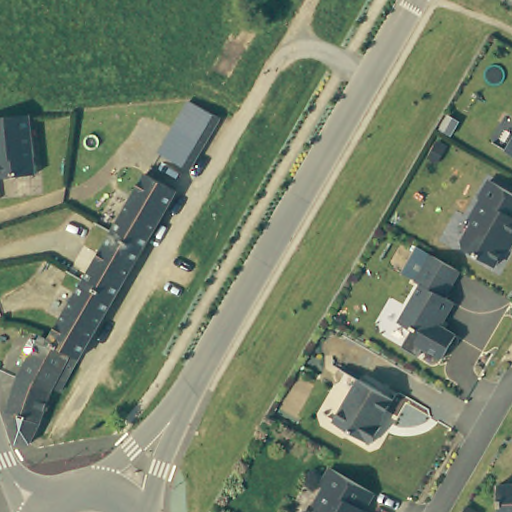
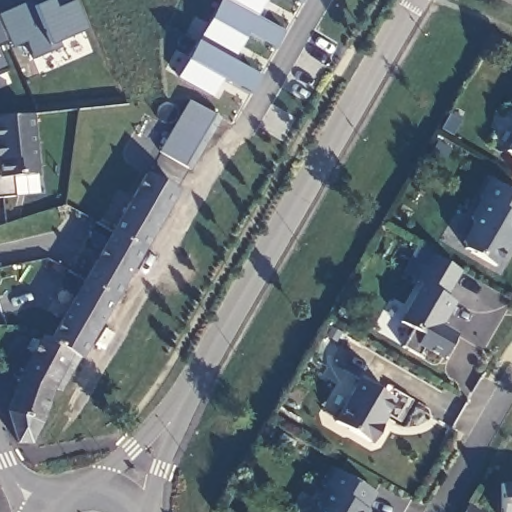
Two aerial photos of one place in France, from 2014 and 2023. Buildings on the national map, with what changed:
new [(61,49),(33,59),(13,8),(31,1),(33,6),(47,1),(47,0),(73,0),(85,31),(57,43),(61,49)]
new [(286,30),(276,48),(248,31),(230,60),(258,76),(248,93),(222,79),(213,94),(181,76),(223,0),(265,0),(257,14),(286,30)]
new [(301,0),(303,0),(302,1),(301,0)]
new [(0,22),(8,45),(0,47),(0,22)]
new [(0,74),(0,51),(7,71),(0,74)]
unchanged [(191,169),(160,152),(190,102),(220,117),(191,169)]
unchanged [(41,176),(4,180),(2,163),(0,163),(0,120),(34,116),(41,176)]
unchanged [(507,155),(512,147),(512,157),(507,155)]
new [(41,176),(44,196),(19,199),(16,179),(41,176)]
unchanged [(139,256),(121,286),(78,363),(76,362),(46,345),(80,286),(108,238),(142,178),(173,195),(139,256)]
unchanged [(468,254),(465,246),(475,228),(473,224),(484,206),(481,204),(491,184),(512,195),(512,245),(498,270),(468,254)]
unchanged [(457,300),(444,324),(459,332),(447,356),(427,346),(422,355),(405,346),(414,328),(402,321),(423,282),(419,280),(433,253),(461,269),(447,295),(457,300)]
unchanged [(46,345),(76,362),(58,396),(50,393),(48,399),(16,382),(39,341),(46,345)]
unchanged [(48,399),(38,430),(27,448),(15,448),(5,416),(16,382),(48,399)]
unchanged [(383,431),(375,446),(337,426),(359,384),(394,403),(380,429),(383,431)]
unchanged [(373,491),(364,511),(367,512),(323,512),(327,504),(322,501),(329,490),(322,486),(333,470),(373,491)]
unchanged [(502,484),(512,483),(512,512),(503,512),(502,484)]

